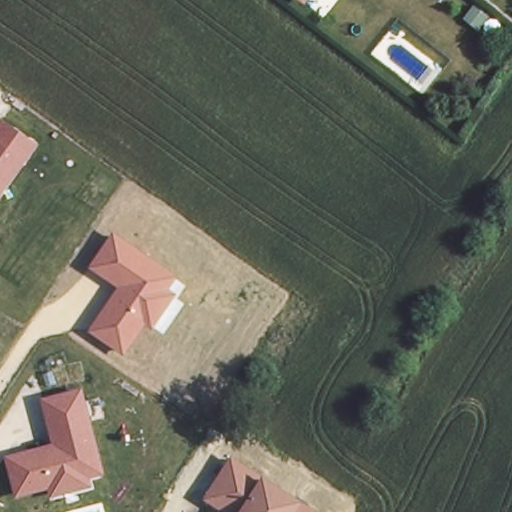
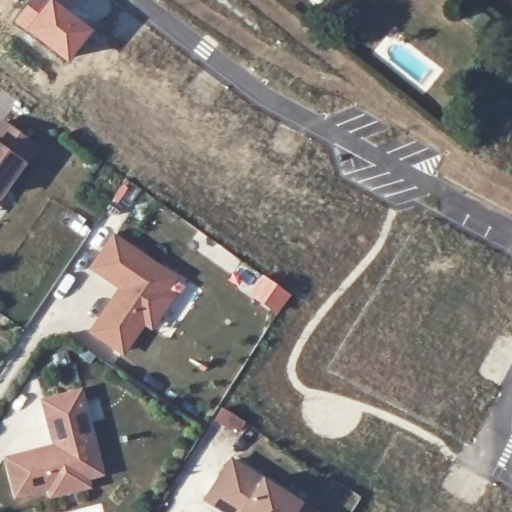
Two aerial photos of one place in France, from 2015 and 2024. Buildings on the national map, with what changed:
new [(28,0),(53,0),(92,29),(67,64),(12,22),(28,0)]
unchanged [(0,198),(0,120),(38,146),(0,198)]
unchanged [(178,277),(168,290),(176,296),(151,330),(143,324),(122,355),(88,332),(118,288),(90,268),(113,234),(178,277)]
unchanged [(81,389),(104,475),(90,479),(92,487),(50,497),(48,490),(15,497),(4,457),(52,443),(40,398),(81,389)]
unchanged [(316,512),(221,512),(201,500),(229,457),(316,512)]

